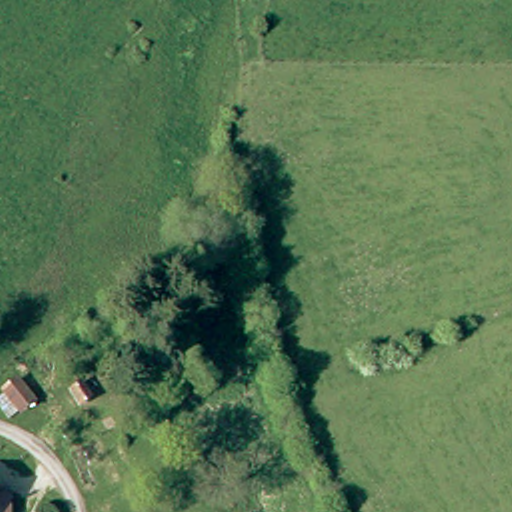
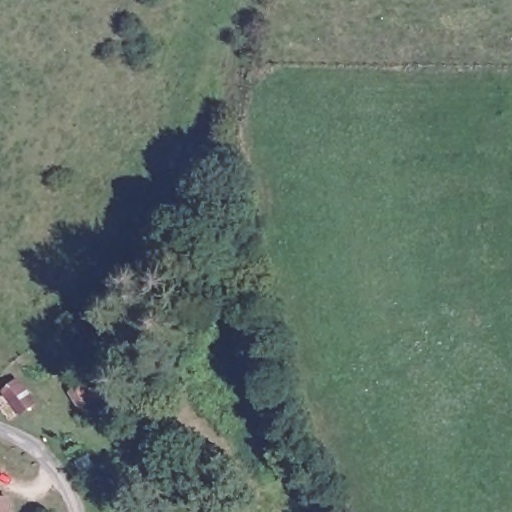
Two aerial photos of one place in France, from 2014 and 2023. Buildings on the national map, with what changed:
unchanged [(0,497),(10,497),(9,512),(0,512),(0,497)]

